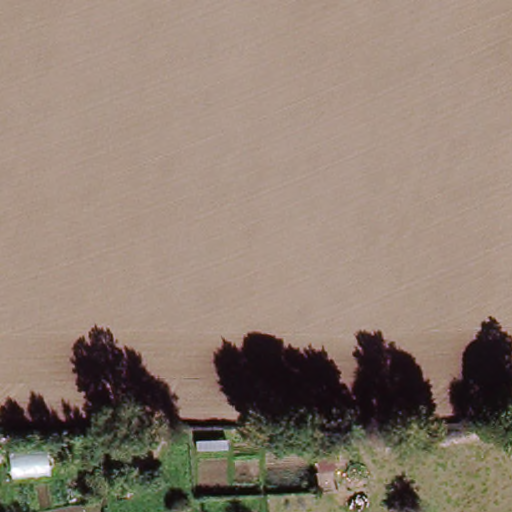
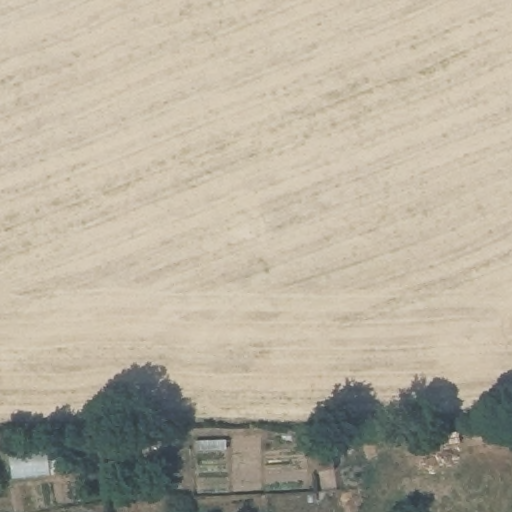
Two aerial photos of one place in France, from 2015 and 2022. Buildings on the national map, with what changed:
[]

